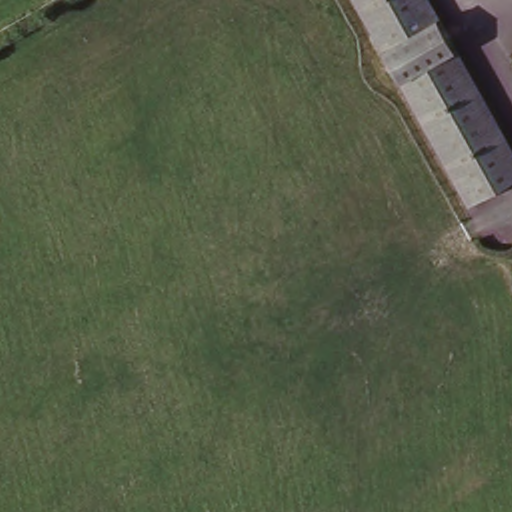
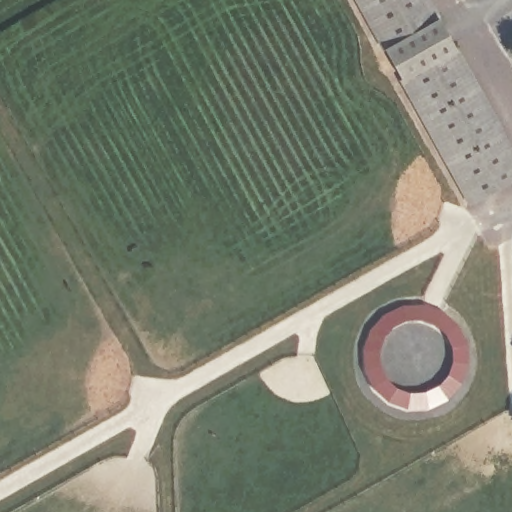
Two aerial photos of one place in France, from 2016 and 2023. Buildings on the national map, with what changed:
unchanged [(451,51),(512,158),(512,181),(467,206),(351,0),(422,0),(434,21),(451,51)]
new [(468,376),(465,387),(460,396),(453,405),(445,412),(435,417),(425,420),(414,421),(404,420),(393,417),(384,412),(375,405),(368,396),(363,387),(360,376),(359,366),(360,355),(363,345),(368,335),(375,327),(384,320),(393,315),(404,312),(414,310),(425,312),(435,315),(445,320),(453,327),(460,335),(465,345),(468,355),(470,366),(468,376)]

